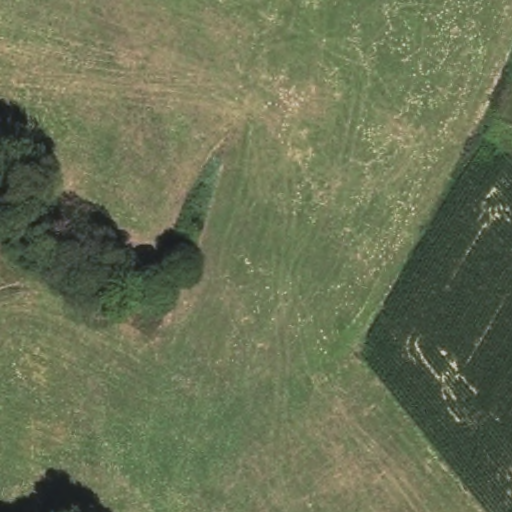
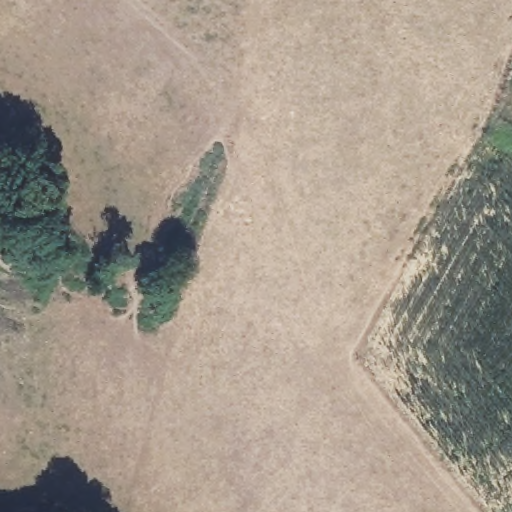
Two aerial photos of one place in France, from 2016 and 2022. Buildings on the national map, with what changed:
[]

